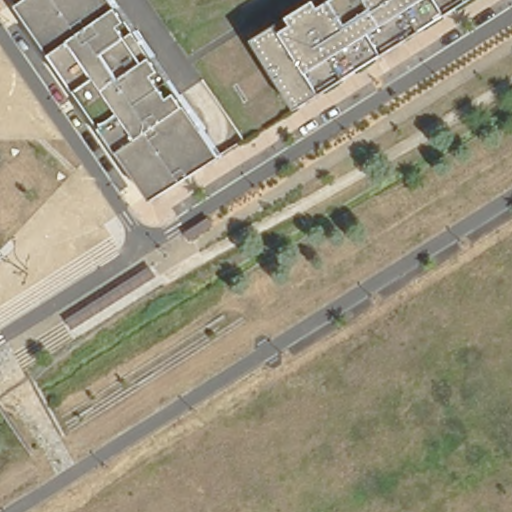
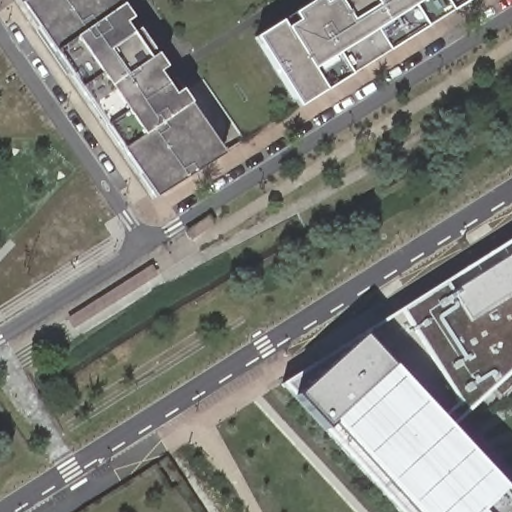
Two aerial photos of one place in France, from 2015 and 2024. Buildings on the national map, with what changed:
unchanged [(222,154),(152,199),(19,1),(21,0),(118,0),(222,154)]
unchanged [(298,105),(254,37),(290,14),(312,0),(471,0),(298,105)]
new [(361,334),(512,239),(512,391),(499,402),(487,390),(447,430),(512,499),(512,512),(416,512),(332,422),(324,430),(293,396),(282,383),(361,334)]
new [(332,422),(416,512),(400,512),(324,430),(332,422)]

